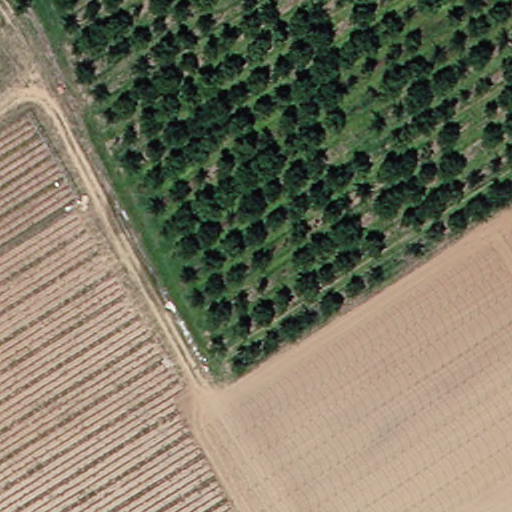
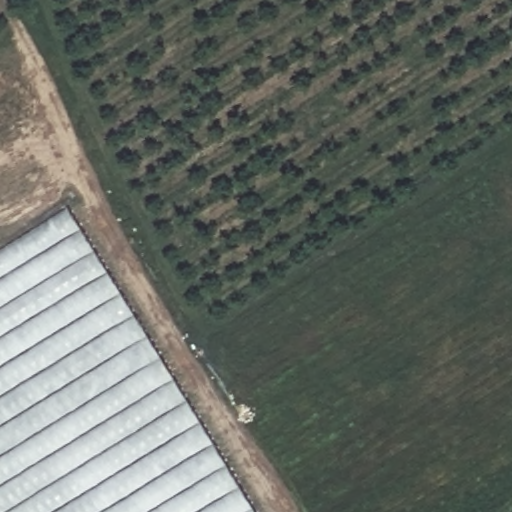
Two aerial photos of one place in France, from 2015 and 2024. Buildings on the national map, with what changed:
new [(0,250),(69,207),(255,512),(0,512),(0,250)]

